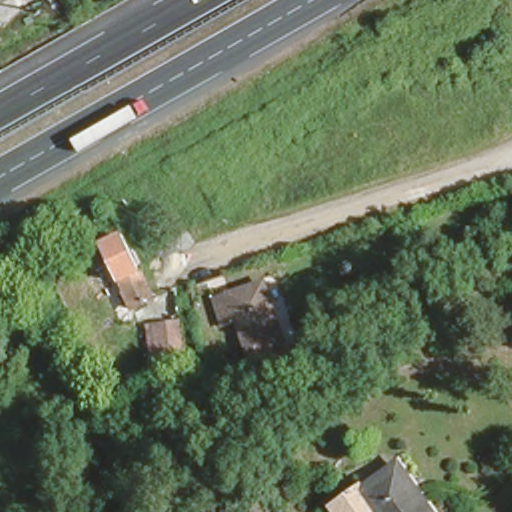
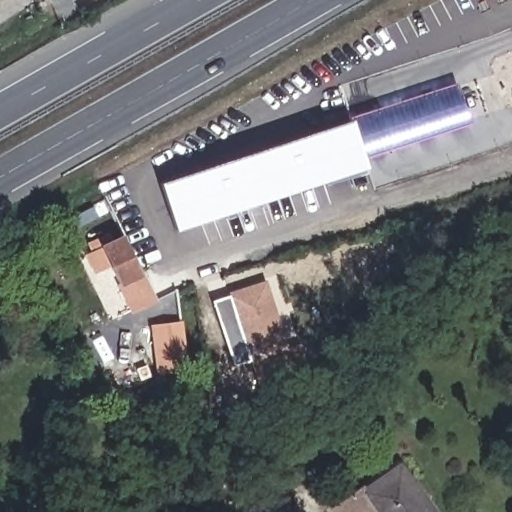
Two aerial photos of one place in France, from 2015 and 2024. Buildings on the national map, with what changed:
new [(457,82),(471,122),(364,159),(350,118),(457,82)]
new [(350,116),(367,167),(172,231),(159,181),(350,116)]
unchanged [(97,266),(87,244),(100,237),(96,229),(107,222),(112,230),(122,225),(155,292),(137,302),(121,311),(97,266)]
unchanged [(357,291),(380,273),(387,282),(363,301),(357,291)]
unchanged [(300,337),(305,352),(262,387),(240,317),(220,324),(210,295),(267,274),(290,341),(300,337)]
unchanged [(141,324),(152,322),(177,314),(187,361),(163,368),(152,371),(141,324)]
unchanged [(308,335),(327,321),(333,330),(316,344),(308,335)]
unchanged [(368,507),(362,512),(339,512),(327,496),(394,448),(439,512),(371,512),(368,507)]

